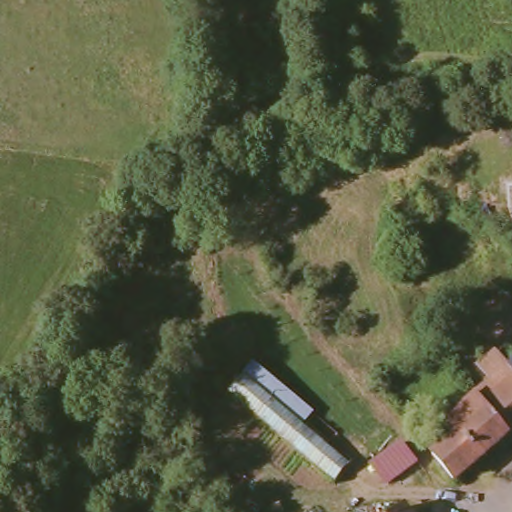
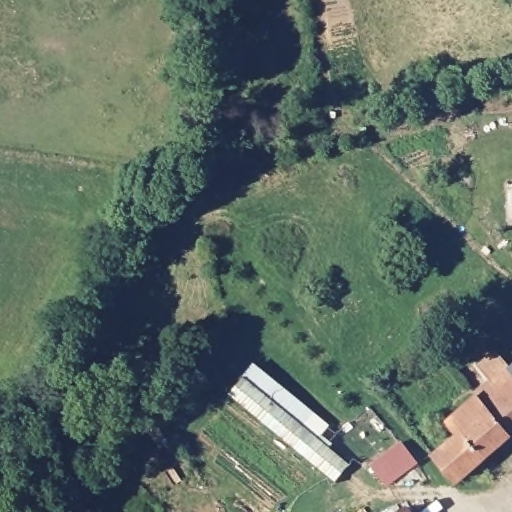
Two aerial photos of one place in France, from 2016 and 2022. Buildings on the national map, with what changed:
unchanged [(458,487),(457,486),(432,459),(457,435),(447,424),(475,398),(486,407),(495,397),(502,390),(489,378),(505,362),(512,370),(512,437),(458,487)]
unchanged [(315,412),(304,425),(351,464),(339,482),(231,395),(244,379),(253,366),(315,412)]
unchanged [(389,488),(377,470),(406,452),(419,469),(389,488)]
unchanged [(411,511),(412,512),(409,512),(411,511)]

